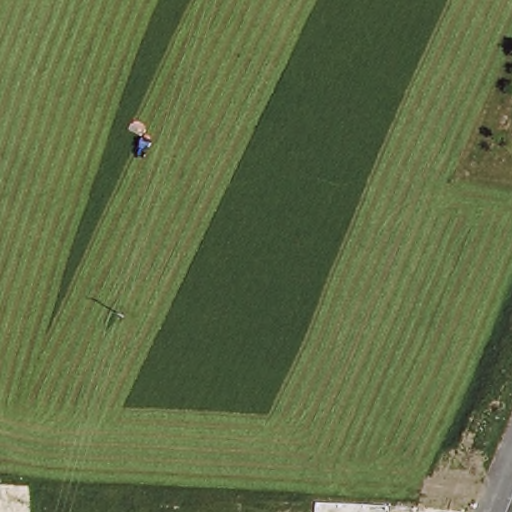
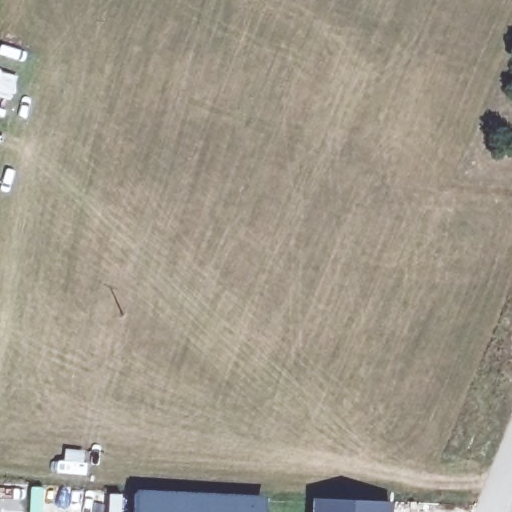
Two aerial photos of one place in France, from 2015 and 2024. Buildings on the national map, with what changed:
new [(266,496),(265,512),(135,512),(136,492),(266,496)]
unchanged [(387,508),(387,512),(312,512),(312,505),(387,508)]

